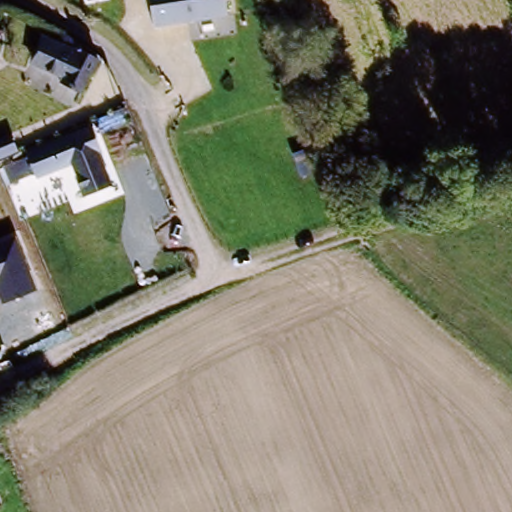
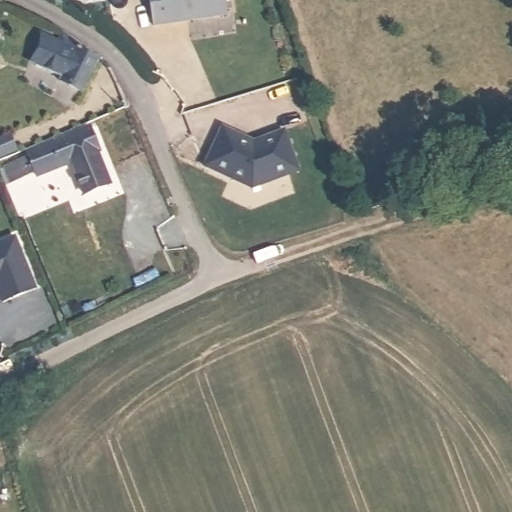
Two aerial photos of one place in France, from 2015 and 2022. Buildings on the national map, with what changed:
unchanged [(229,14),(154,27),(149,0),(226,0),(229,14)]
unchanged [(41,39),(47,25),(68,36),(101,54),(85,92),(60,80),(61,75),(31,61),(41,39)]
unchanged [(8,155),(0,158),(0,128),(5,126),(16,152),(91,123),(102,151),(99,152),(68,162),(28,176),(13,181),(8,155)]
new [(301,171),(254,191),(204,168),(222,127),(255,142),(285,131),(301,171)]
unchanged [(68,162),(99,152),(111,187),(81,199),(68,162)]
unchanged [(1,302),(0,298),(0,242),(16,236),(37,287),(1,302)]

